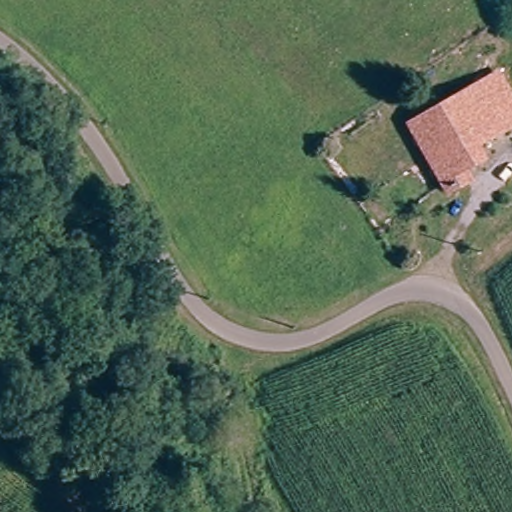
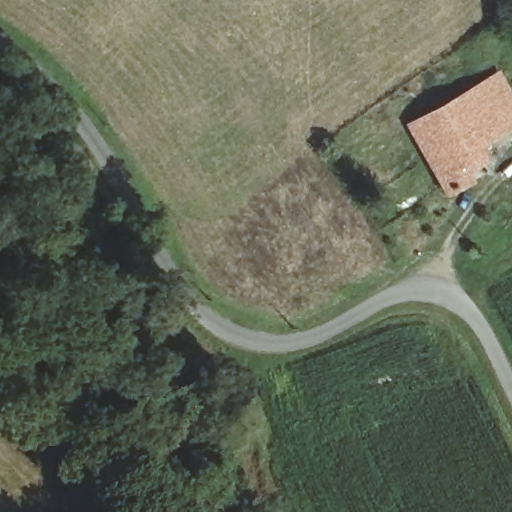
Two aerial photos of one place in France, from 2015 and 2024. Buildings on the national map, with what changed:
unchanged [(512,123),(512,125),(479,149),(485,157),(464,172),(475,187),(455,201),(407,132),(484,82),(512,123)]

